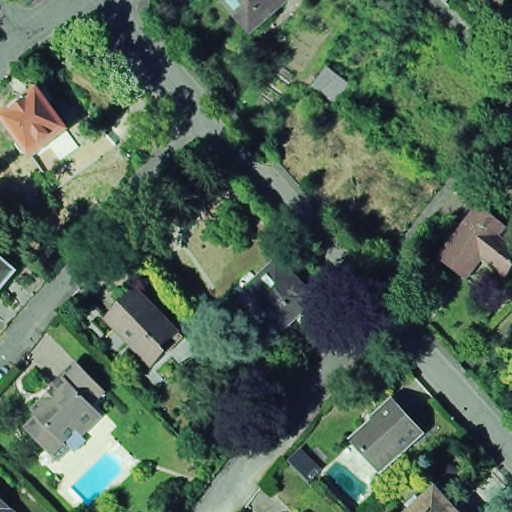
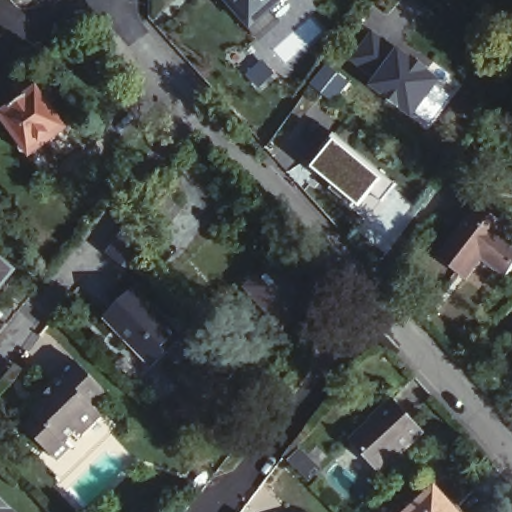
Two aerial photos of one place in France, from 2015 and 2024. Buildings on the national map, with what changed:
unchanged [(273,12),(257,26),(251,19),(233,0),(287,0),(273,12)]
new [(398,47),(442,80),(414,120),(370,86),(375,79),(352,59),(374,30),(398,47)]
unchanged [(330,66),(349,81),(333,101),(314,85),(330,66)]
unchanged [(33,97),(32,95),(32,93),(40,88),(42,88),(43,89),(49,86),(77,124),(75,125),(80,132),(65,143),(60,137),(42,149),(41,147),(39,148),(33,147),(28,140),(29,134),(30,133),(14,110),(33,97)]
demolished [(305,133),(312,141),(313,140),(327,156),(326,157),(333,164),(320,176),(314,168),(313,169),(298,153),(299,152),(292,145),(305,133)]
new [(397,185),(382,202),(373,193),(361,208),(354,203),(350,207),(330,190),(333,186),(313,168),(322,157),(318,154),(335,134),(397,185)]
unchanged [(506,221),(512,226),(512,229),(507,235),(512,240),(512,277),(511,278),(488,260),(472,280),(464,274),(443,257),(484,204),(506,221)]
unchanged [(135,221),(151,233),(126,265),(110,253),(135,221)]
unchanged [(24,271),(0,299),(0,250),(24,271)]
unchanged [(263,274),(285,255),(320,294),(288,323),(277,310),(278,309),(266,296),(254,283),(263,274)]
unchanged [(143,282),(144,282),(142,284),(185,327),(168,343),(172,347),(156,363),(156,362),(157,360),(111,314),(110,315),(109,314),(143,282)]
unchanged [(189,329),(190,330),(186,334),(185,333),(189,329)]
unchanged [(39,416),(33,410),(48,396),(51,399),(58,393),(51,386),(77,361),(107,391),(93,405),(103,416),(83,435),(78,430),(65,443),(60,437),(48,449),(27,427),(39,416)]
unchanged [(393,399),(422,432),(380,470),(354,441),(379,419),(379,411),(393,399)]
unchanged [(22,512),(0,512),(0,489),(22,512)]
unchanged [(410,505),(418,497),(423,503),(438,490),(454,508),(459,507),(464,512),(413,512),(415,510),(410,505)]

